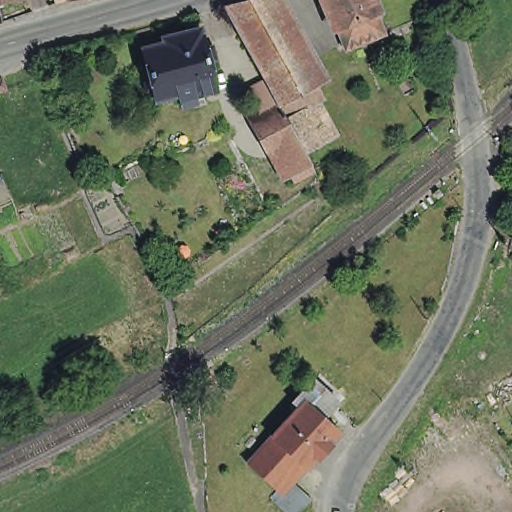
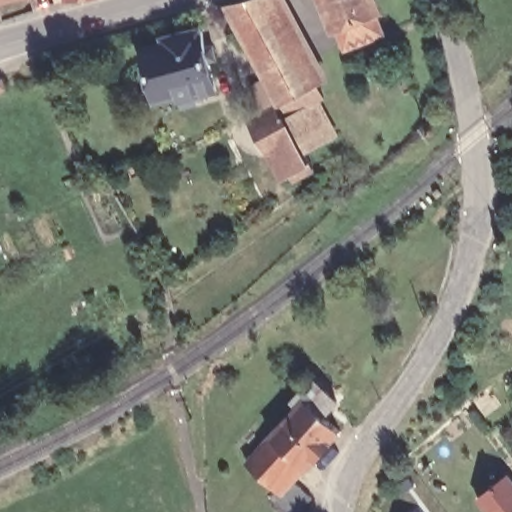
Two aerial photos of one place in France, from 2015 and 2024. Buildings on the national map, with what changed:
unchanged [(65,0),(101,0),(67,9),(65,0)]
unchanged [(283,180),(250,120),(259,115),(247,93),(264,84),(262,80),(229,16),(225,9),(257,0),(271,0),(319,88),(316,90),(322,102),(316,105),(335,140),(304,156),(309,166),(307,167),(312,175),(294,186),(289,177),(283,180)]
unchanged [(332,35),(330,35),(315,0),(365,0),(372,18),(370,19),(378,37),(340,52),(332,35)]
unchanged [(163,46),(162,42),(199,32),(215,95),(192,101),(193,107),(182,110),(180,105),(178,105),(177,99),(154,104),(152,97),(145,95),(142,85),(149,80),(141,52),(163,46)]
unchanged [(0,94),(0,88),(2,93),(0,94)]
unchanged [(287,406),(307,382),(332,404),(318,420),(335,434),(301,472),(295,467),(265,440),(292,410),(287,406)]
unchanged [(242,466),(229,455),(249,433),(260,444),(265,440),(295,467),(282,480),(307,501),(300,508),(297,512),(273,512),(262,502),(271,492),(242,466)]
new [(512,487),(512,512),(481,512),(467,495),(502,473),(512,487)]
new [(420,512),(417,512),(420,511),(420,512)]

